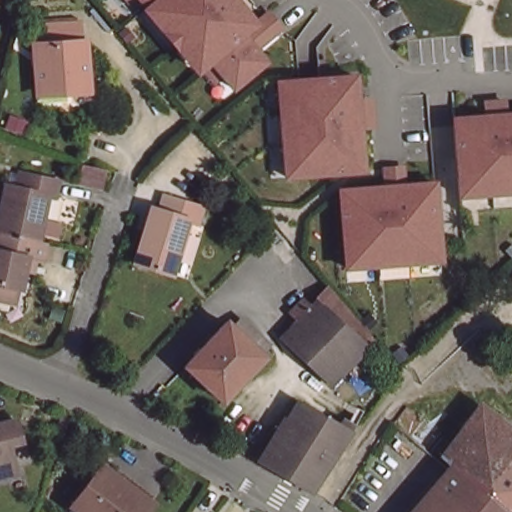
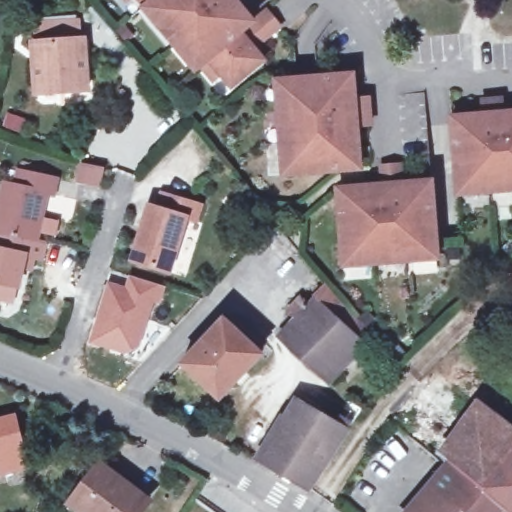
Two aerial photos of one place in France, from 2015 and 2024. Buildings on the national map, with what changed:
unchanged [(228,84),(211,57),(193,73),(139,3),(136,0),(234,0),(250,20),(267,7),(280,28),(254,48),(259,58),(228,84)]
unchanged [(62,97),(61,88),(31,91),(27,49),(32,49),(30,31),(72,27),(74,45),(79,44),(84,95),(62,97)]
unchanged [(274,180),(267,87),(357,78),(365,171),(274,180)]
unchanged [(447,114),(512,110),(512,191),(452,195),(447,114)]
unchanged [(16,270),(12,287),(0,284),(0,183),(10,185),(14,171),(52,180),(49,196),(42,195),(37,218),(54,222),(50,238),(33,234),(31,242),(37,244),(34,260),(29,259),(26,272),(16,270)]
unchanged [(435,256),(342,265),(337,185),(429,182),(435,256)]
unchanged [(169,260),(164,277),(127,265),(144,210),(152,213),(157,199),(195,211),(190,226),(179,263),(169,260)]
unchanged [(512,273),(512,281),(509,278),(512,273)]
new [(106,279),(124,284),(127,275),(165,286),(159,305),(157,304),(142,344),(135,352),(124,353),(86,343),(106,279)]
unchanged [(369,347),(326,391),(277,348),(295,328),(287,320),(299,307),(307,315),(326,296),(369,347)]
unchanged [(214,408),(178,374),(218,329),(225,335),(232,326),(252,344),(260,351),(252,360),(257,364),(214,408)]
unchanged [(262,453),(264,455),(281,427),(279,426),(291,406),(333,430),(337,424),(347,429),(343,436),(303,496),(253,466),(262,453)]
unchanged [(473,409),(512,440),(512,512),(499,512),(477,494),(462,480),(449,469),(442,464),(435,458),(473,409)]
unchanged [(9,418),(14,439),(2,442),(9,470),(0,472),(0,420),(9,418)]
unchanged [(71,503),(99,466),(147,502),(140,512),(71,512),(67,509),(71,503)]
unchanged [(462,480),(477,494),(499,512),(409,512),(429,491),(430,492),(449,469),(462,480)]
unchanged [(38,512),(36,512),(37,511),(38,512)]

